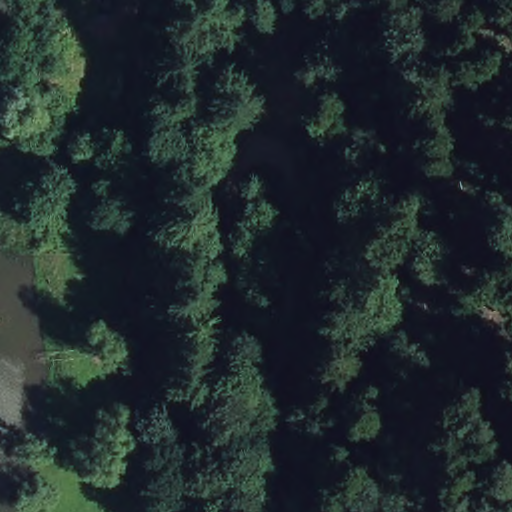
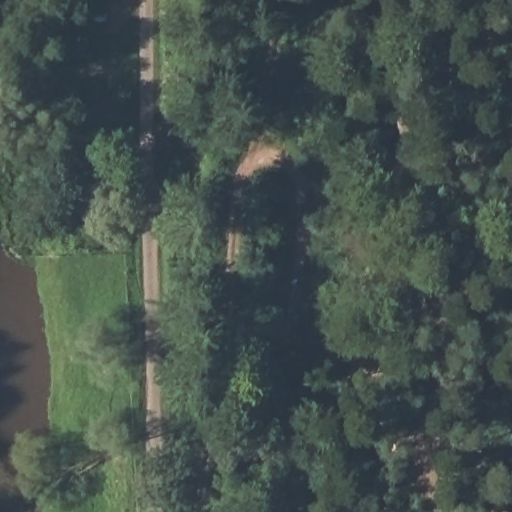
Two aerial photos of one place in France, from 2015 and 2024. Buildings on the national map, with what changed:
[]

